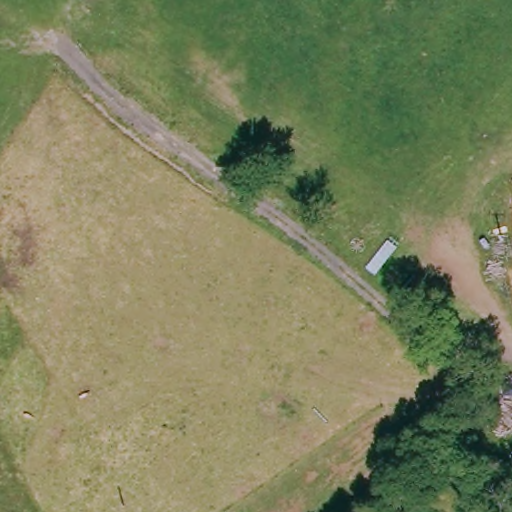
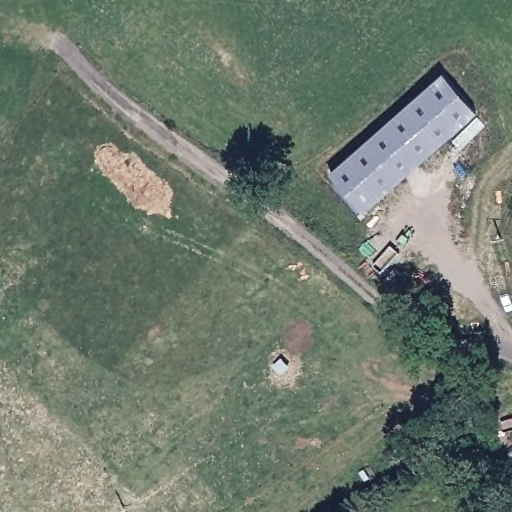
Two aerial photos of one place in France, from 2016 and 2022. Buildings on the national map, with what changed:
new [(478,110),(364,211),(331,173),(444,71),(478,110)]

